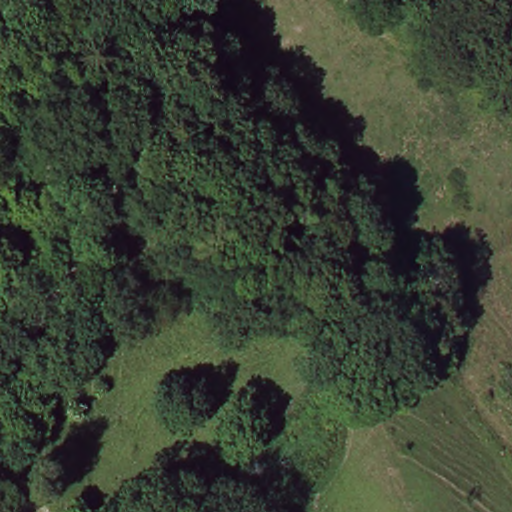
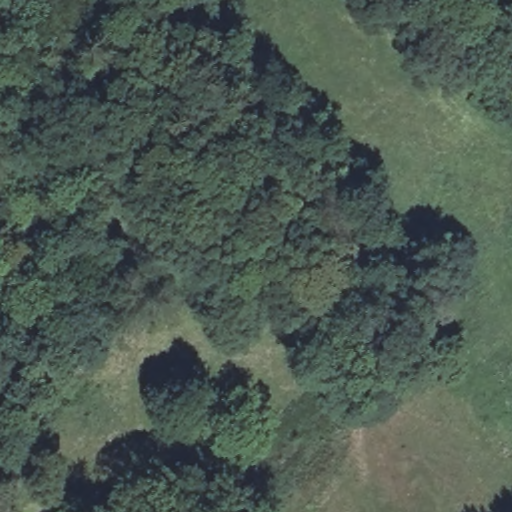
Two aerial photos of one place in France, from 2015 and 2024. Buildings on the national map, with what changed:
[]

